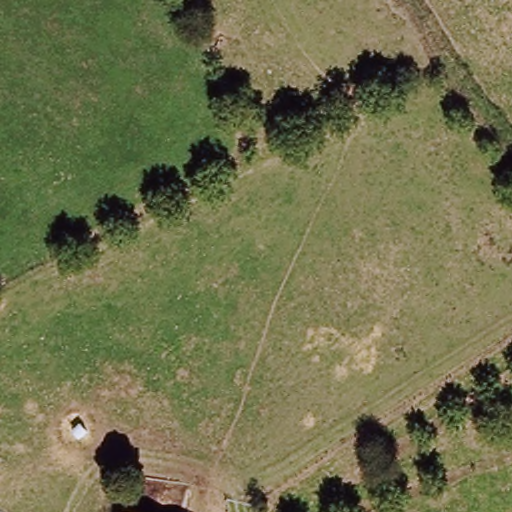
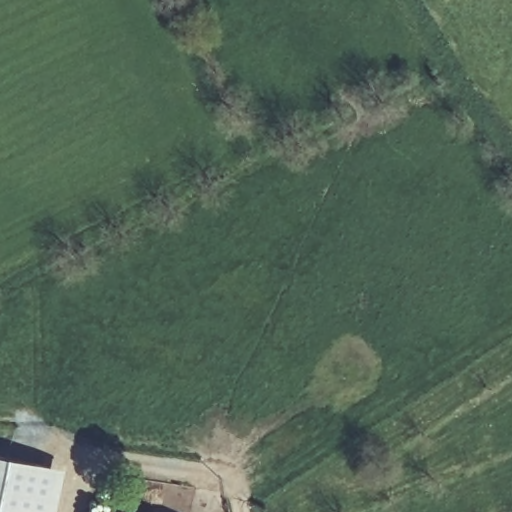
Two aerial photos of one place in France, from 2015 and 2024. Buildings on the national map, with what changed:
new [(0,512),(0,455),(65,468),(56,512),(0,512)]
unchanged [(112,512),(109,512),(110,511),(112,512)]

